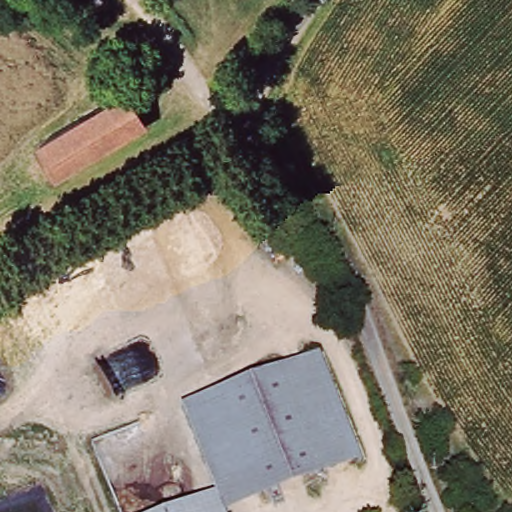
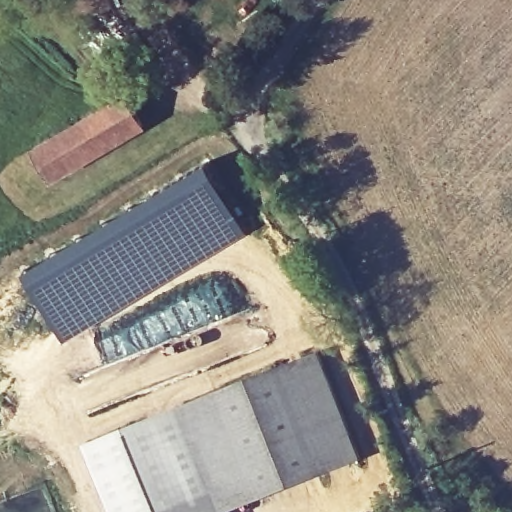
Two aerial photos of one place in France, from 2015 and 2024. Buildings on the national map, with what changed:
unchanged [(140,125),(50,176),(32,146),(124,95),(140,125)]
new [(142,198),(204,164),(246,234),(157,291),(97,324),(65,340),(22,267),(142,198)]
unchanged [(181,403),(317,345),(362,452),(226,508),(219,487),(181,403)]
unchanged [(219,487),(226,508),(228,512),(162,512),(219,487)]

